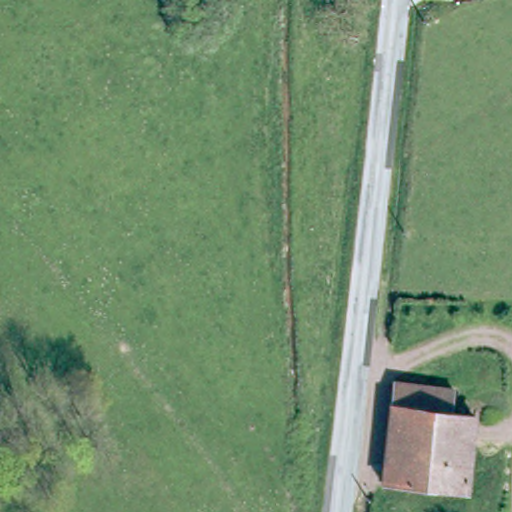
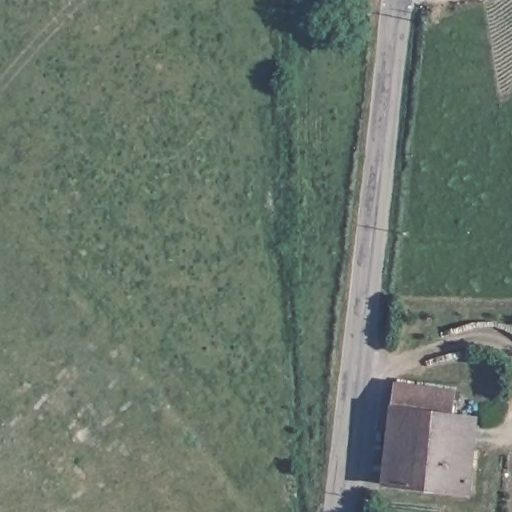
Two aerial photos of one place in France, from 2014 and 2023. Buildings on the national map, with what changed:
unchanged [(397,381),(456,388),(453,414),(480,417),(472,491),(384,482),(397,381)]

